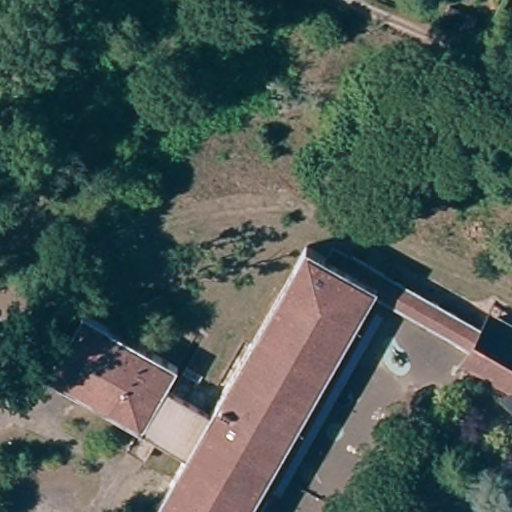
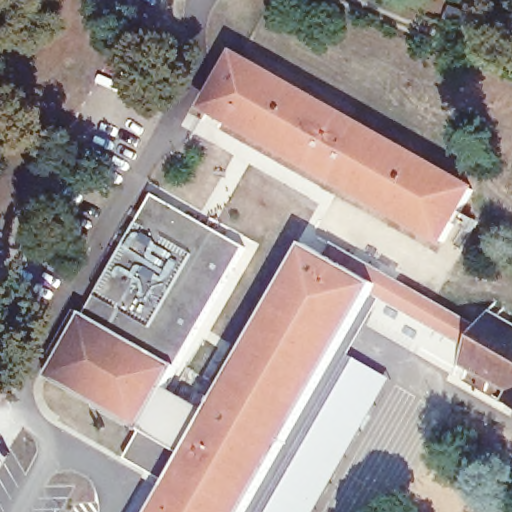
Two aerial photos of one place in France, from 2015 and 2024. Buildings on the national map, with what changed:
new [(201,110),(234,50),(479,189),(443,247),(201,110)]
new [(90,311),(153,196),(245,249),(181,362),(90,311)]
unchanged [(143,424),(54,372),(73,341),(49,327),(56,316),(78,329),(90,311),(181,362),(169,385),(174,388),(212,410),(253,341),(310,243),(348,267),(355,256),(475,325),(464,344),(375,292),(367,304),(323,381),(339,390),(287,477),(279,491),(265,482),(248,512),(153,512),(189,451),(158,432),(143,424)]
unchanged [(500,318),(512,324),(512,408),(504,403),(510,391),(470,368),(480,352),(464,344),(475,325),(491,335),(500,318)]
new [(145,426),(158,432),(189,451),(170,482),(127,458),(145,426)]

